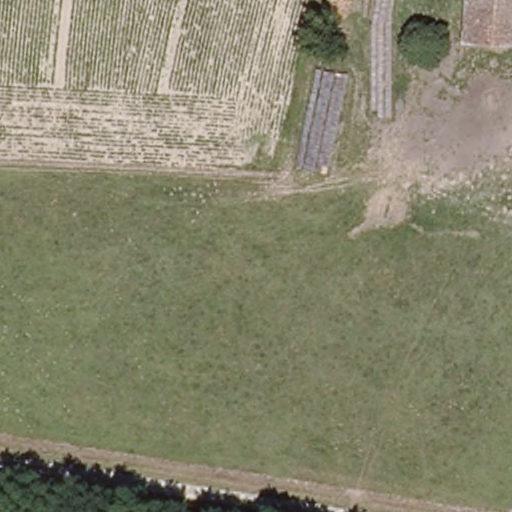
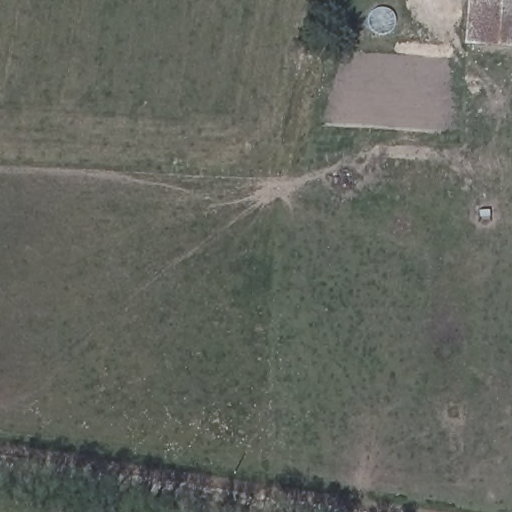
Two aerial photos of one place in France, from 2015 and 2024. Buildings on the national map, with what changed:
unchanged [(466,34),(470,0),(512,0),(512,39),(466,34)]

